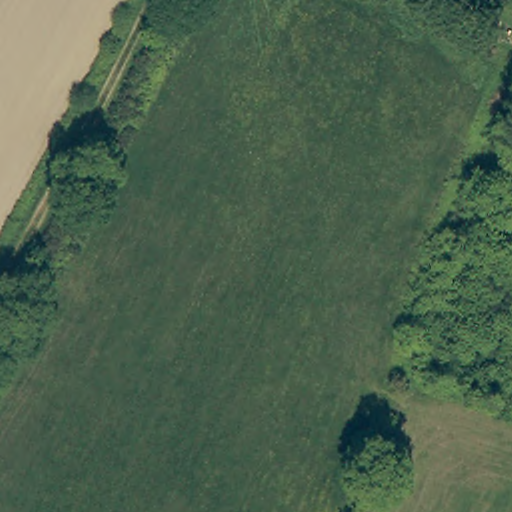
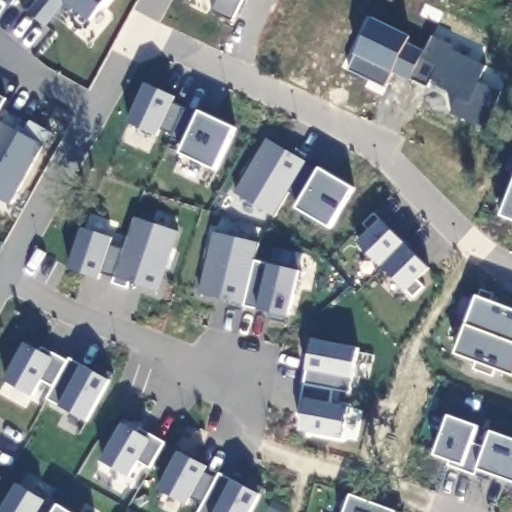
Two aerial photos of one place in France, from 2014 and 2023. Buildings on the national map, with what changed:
new [(12,6),(5,0),(16,0),(12,6)]
new [(91,26),(64,4),(46,29),(26,11),(35,0),(114,0),(91,26)]
new [(216,0),(242,0),(232,23),(211,12),(216,0)]
new [(187,141),(161,130),(157,137),(128,123),(145,85),(175,98),(173,105),(198,117),(187,141)]
new [(5,99),(0,107),(0,96),(5,99)]
new [(50,133),(10,204),(0,199),(0,119),(5,111),(50,133)]
new [(216,170),(181,153),(187,141),(198,117),(200,113),(234,128),(216,170)]
new [(233,194),(265,140),(294,154),(296,149),(309,157),(306,165),(274,217),(233,194)]
new [(330,227),(296,209),(320,169),(352,188),(330,227)]
new [(512,190),(512,220),(502,217),(512,190)]
new [(406,292),(356,243),(369,231),(363,226),(374,215),(379,220),(430,269),(419,281),(423,288),(413,297),(406,292)]
new [(159,293),(129,283),(127,288),(112,284),(114,277),(102,275),(100,279),(67,269),(81,228),(113,238),(110,246),(123,251),(133,217),(178,233),(159,293)]
new [(269,265),(298,271),(287,318),(286,324),(269,321),(270,314),(244,308),(242,311),(227,308),(229,303),(199,294),(213,233),(260,243),(256,261),(269,265)]
new [(492,377),(474,371),(477,363),(454,355),(477,297),(480,290),(492,295),(490,302),(512,310),(512,375),(496,370),(492,377)]
new [(350,394),(333,391),(330,404),(348,408),(342,439),(299,431),(302,415),(298,414),(313,339),(358,349),(350,394)]
new [(67,362),(70,359),(82,365),(96,373),(98,366),(110,373),(109,380),(87,423),(59,406),(46,399),(51,387),(42,381),(33,397),(3,381),(23,343),(43,353),(44,348),(67,362)]
new [(472,443),(485,449),(491,432),(512,439),(512,482),(495,476),(490,481),(449,466),(454,462),(434,454),(448,416),(478,427),(472,443)]
new [(137,432),(140,435),(142,429),(164,442),(149,469),(139,462),(130,478),(101,461),(122,423),(137,432)]
new [(205,474),(216,480),(219,474),(233,481),(246,488),(247,480),(262,488),(260,496),(251,512),(199,512),(203,505),(191,498),(187,505),(159,490),(179,453),(207,468),(205,474)]
new [(45,512),(0,512),(16,485),(45,502),(41,509),(45,512)]
new [(395,512),(345,512),(352,495),(395,512)]
new [(69,512),(53,512),(57,505),(69,512)]

